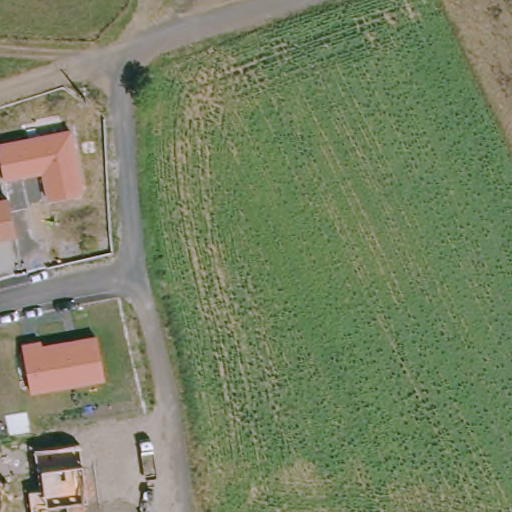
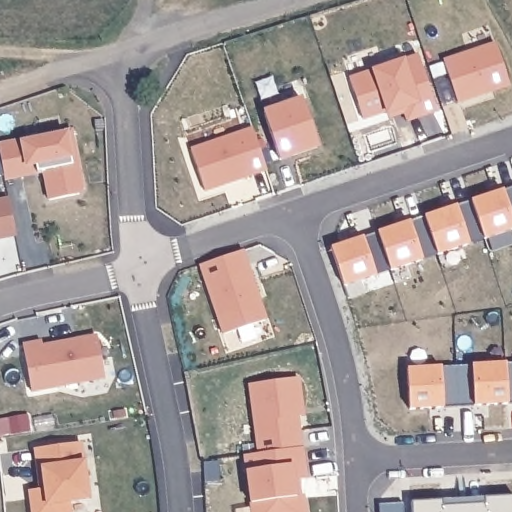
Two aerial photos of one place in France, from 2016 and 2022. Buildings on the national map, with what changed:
new [(496,44),(510,85),(458,103),(443,61),(496,44)]
new [(436,111),(407,121),(402,109),(387,114),(386,111),(363,119),(350,79),(418,56),(436,111)]
new [(301,100),(317,148),(280,161),(263,113),(301,100)]
unchanged [(82,194),(47,201),(41,173),(6,180),(0,153),(0,142),(70,130),(82,194)]
new [(265,170),(205,191),(190,150),(252,130),(265,170)]
new [(512,187),(512,230),(485,239),(471,201),(512,187)]
unchanged [(17,235),(0,238),(0,197),(10,196),(17,235)]
new [(471,201),(485,239),(437,256),(424,217),(471,201)]
new [(424,217),(437,256),(390,271),(377,233),(424,217)]
new [(390,271),(344,287),(331,248),(377,233),(390,271)]
new [(200,262),(242,248),(265,316),(223,331),(200,262)]
unchanged [(41,339),(43,344),(96,334),(105,379),(30,392),(21,343),(41,339)]
new [(512,363),(512,404),(508,404),(506,364),(512,363)]
new [(506,364),(508,404),(459,407),(456,367),(506,364)]
new [(456,367),(459,407),(410,410),(407,370),(456,367)]
new [(303,417),(297,417),(301,451),(259,456),(250,386),(298,379),(302,409),(303,417)]
unchanged [(80,444),(87,502),(70,504),(70,512),(32,512),(29,489),(41,487),(36,451),(80,444)]
new [(259,456),(301,451),(306,480),(293,482),(295,497),(303,495),(305,512),(252,512),(245,458),(259,456)]
new [(442,501),(442,507),(484,505),(483,499),(512,496),(512,512),(411,512),(410,503),(442,501)]
new [(403,503),(404,512),(380,512),(380,505),(403,503)]

